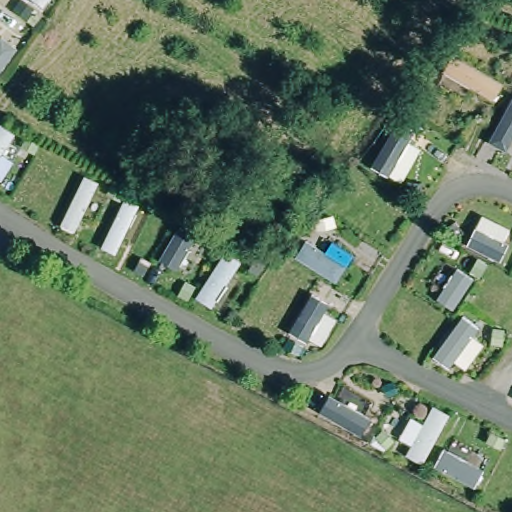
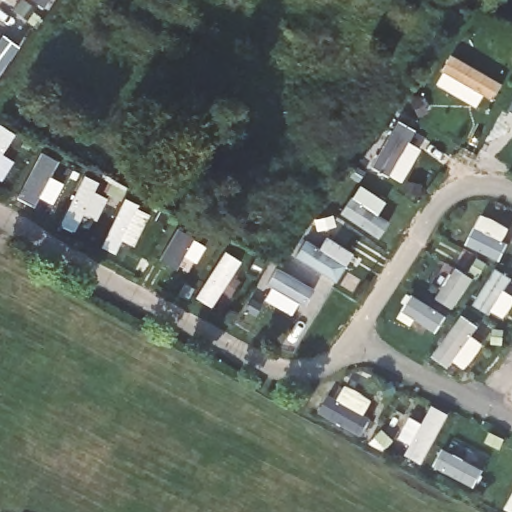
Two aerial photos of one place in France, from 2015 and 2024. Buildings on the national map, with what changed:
[]

